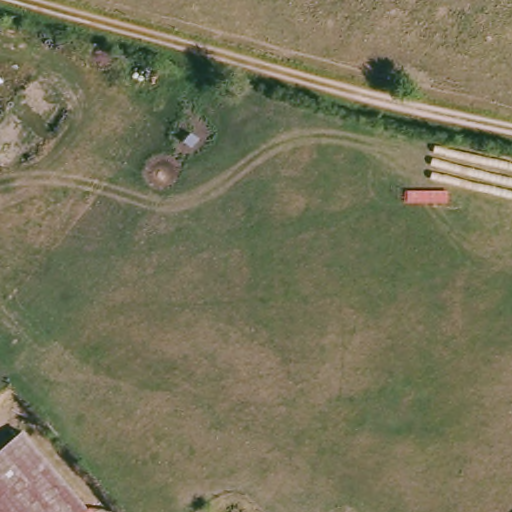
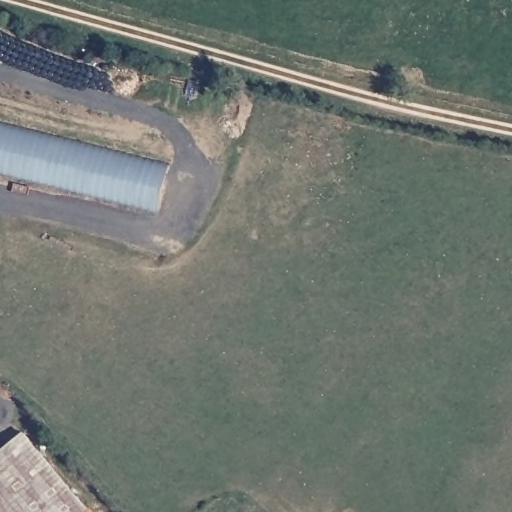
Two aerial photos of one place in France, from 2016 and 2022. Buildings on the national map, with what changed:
new [(168,165),(159,210),(0,170),(0,123),(168,165)]
unchanged [(22,430),(92,512),(0,512),(0,448),(22,430)]

